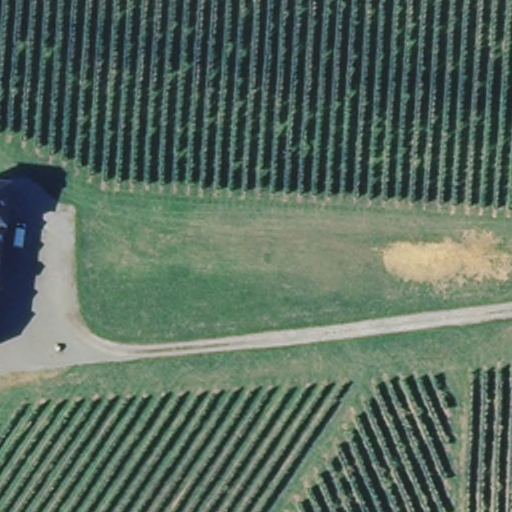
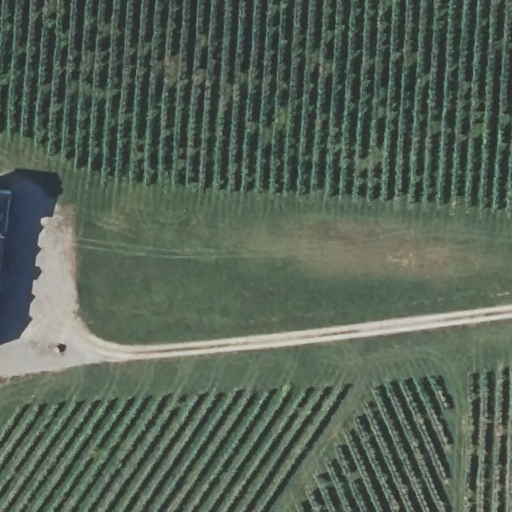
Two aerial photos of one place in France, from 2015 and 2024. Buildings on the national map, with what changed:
unchanged [(0,290),(0,196),(13,199),(0,290)]

